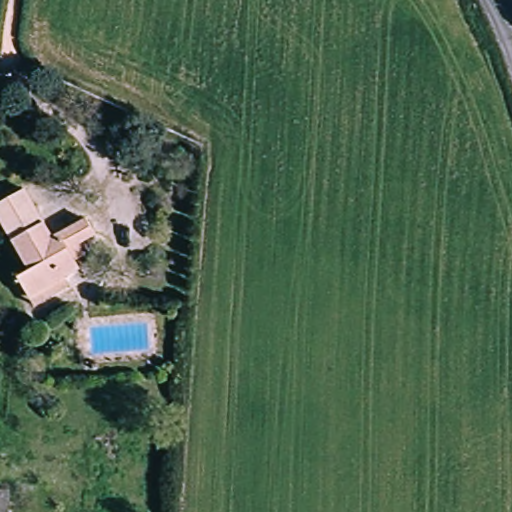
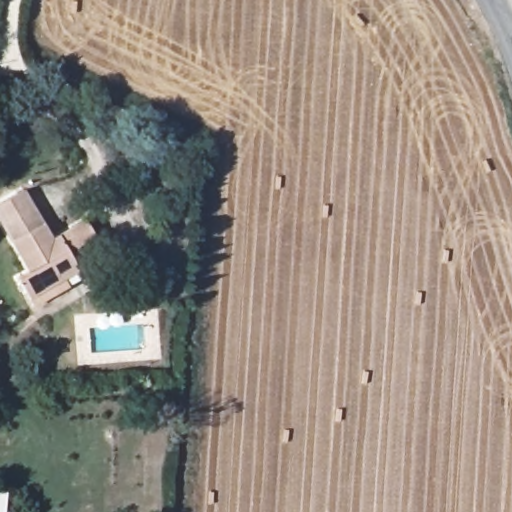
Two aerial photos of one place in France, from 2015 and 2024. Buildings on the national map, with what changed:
unchanged [(25,301),(13,282),(25,274),(0,228),(0,203),(18,193),(48,239),(82,221),(91,235),(73,247),(78,257),(70,261),(77,272),(58,284),(63,291),(30,310),(25,301)]
unchanged [(0,510),(3,511),(3,512),(0,512),(0,510)]

